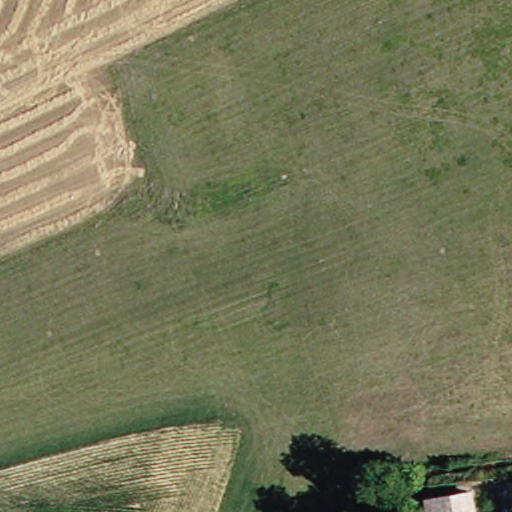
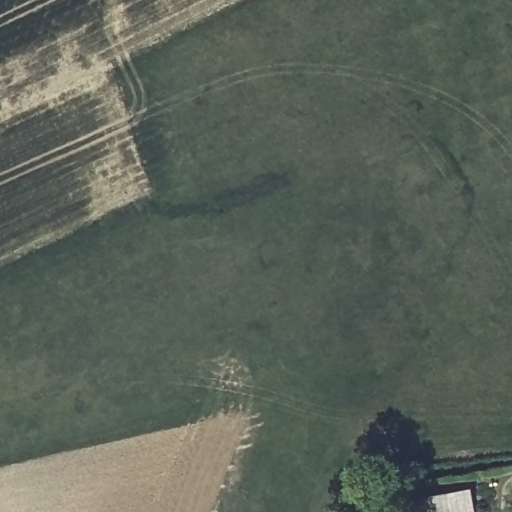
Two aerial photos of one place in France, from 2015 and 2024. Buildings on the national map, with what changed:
unchanged [(428,512),(425,495),(474,485),(478,512),(428,512)]

